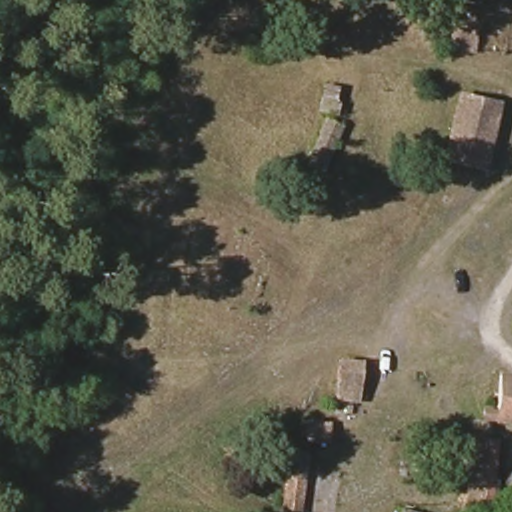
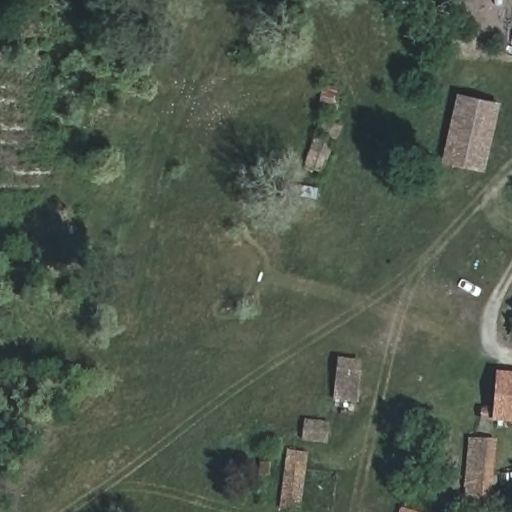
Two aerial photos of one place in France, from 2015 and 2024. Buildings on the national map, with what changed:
unchanged [(451,179),(442,180),(455,93),(496,98),(485,174),(451,179)]
unchanged [(323,118),(343,128),(322,179),(302,170),(323,118)]
unchanged [(337,361),(361,362),(356,404),(333,402),(337,361)]
unchanged [(512,424),(494,423),(495,374),(512,375),(512,424)]
unchanged [(328,421),(327,445),(302,443),(305,420),(328,421)]
unchanged [(496,440),(490,504),(466,505),(470,439),(496,440)]
unchanged [(308,452),(301,512),(288,512),(280,511),(288,450),(308,452)]

